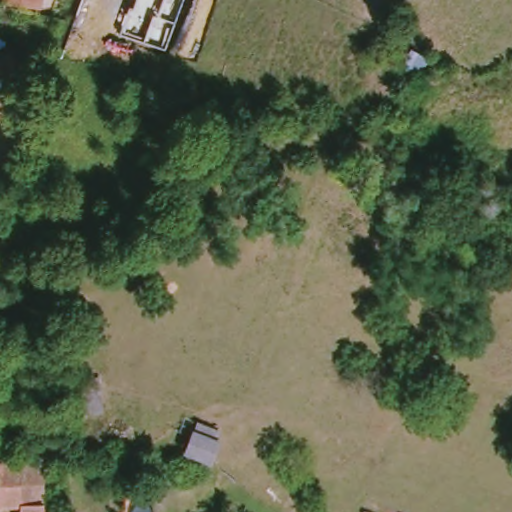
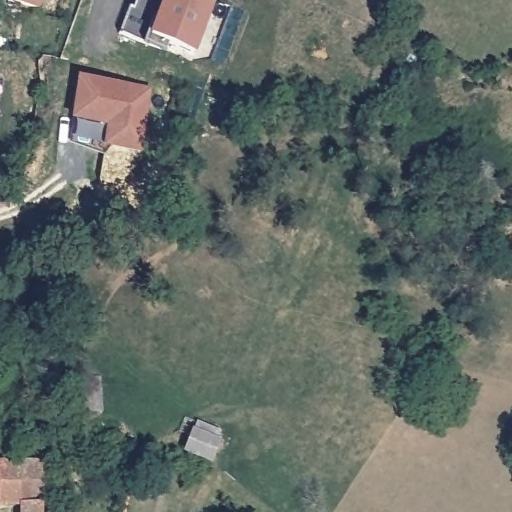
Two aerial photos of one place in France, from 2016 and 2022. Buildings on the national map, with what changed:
unchanged [(3,1),(0,0),(36,0),(35,6),(3,1)]
new [(162,0),(202,0),(213,4),(196,52),(148,35),(162,0)]
new [(76,78),(151,89),(141,152),(103,146),(106,126),(71,122),(76,78)]
unchanged [(40,504),(40,512),(14,512),(14,505),(0,506),(0,462),(40,461),(40,504)]

